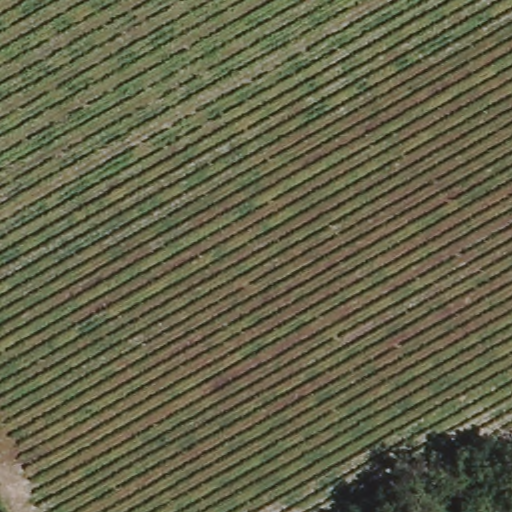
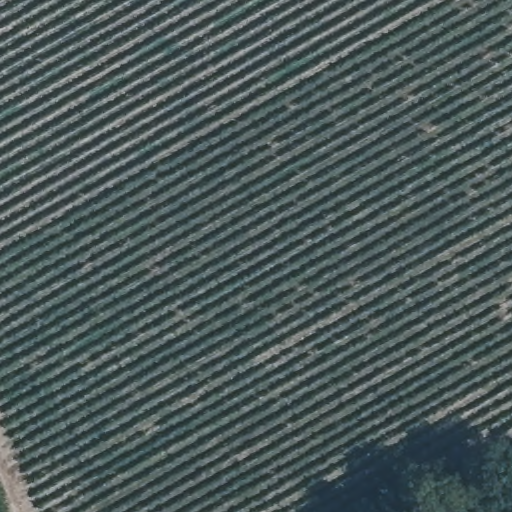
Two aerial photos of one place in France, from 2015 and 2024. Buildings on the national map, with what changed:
[]

